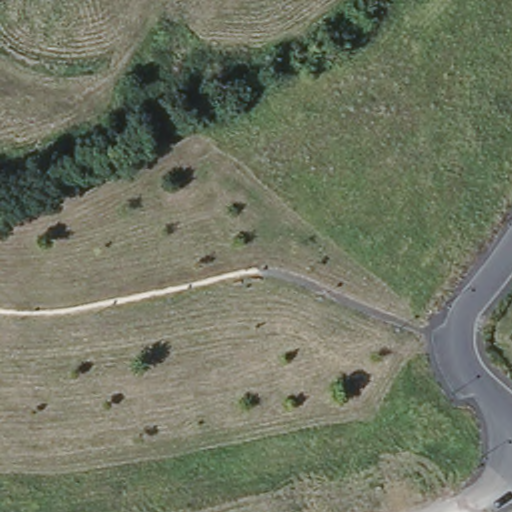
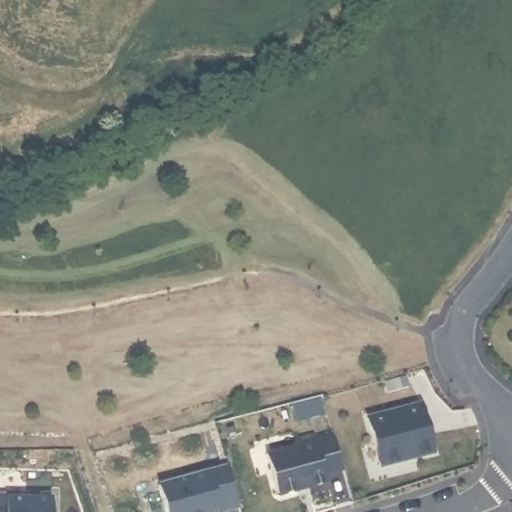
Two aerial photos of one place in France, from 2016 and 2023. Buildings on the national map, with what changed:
new [(422,406),(435,454),(381,468),(369,419),(422,406)]
new [(267,458),(298,449),(297,446),(315,441),(316,444),(335,437),(342,471),(325,474),(327,483),(280,496),(267,458)]
new [(229,469),(238,507),(220,512),(168,512),(160,488),(229,469)]
new [(7,498),(53,499),(53,512),(7,512),(7,498)]

